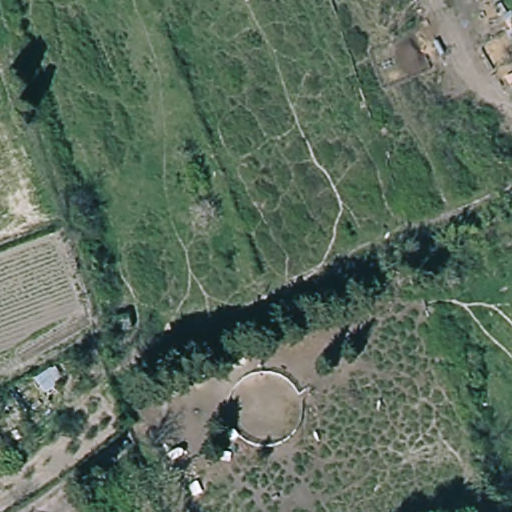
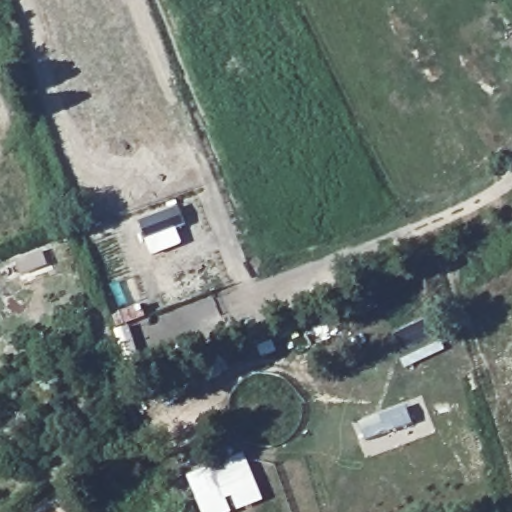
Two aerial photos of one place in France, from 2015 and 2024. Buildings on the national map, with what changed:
unchanged [(125,312),(130,330),(118,333),(113,316),(125,312)]
new [(188,478),(245,455),(264,502),(240,512),(202,512),(188,478)]

